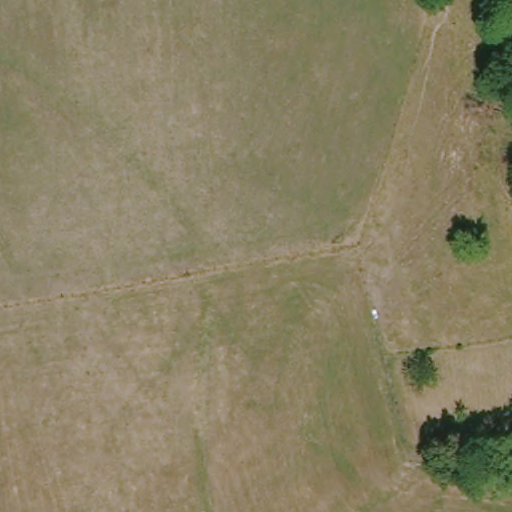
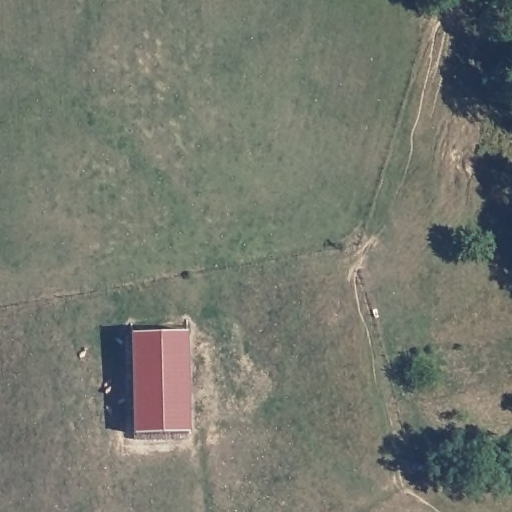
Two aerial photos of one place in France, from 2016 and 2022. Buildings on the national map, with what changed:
new [(186,332),(189,431),(133,432),(131,334),(186,332)]

